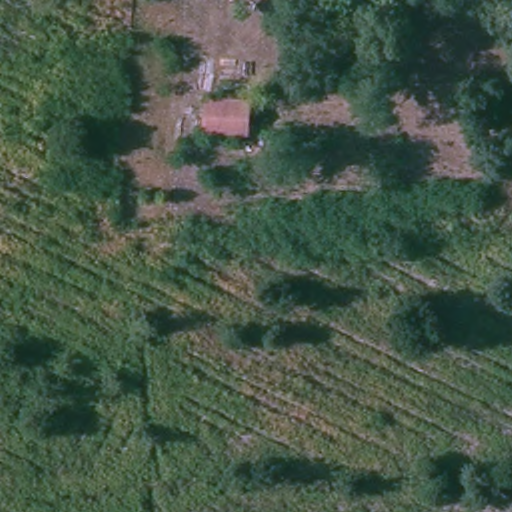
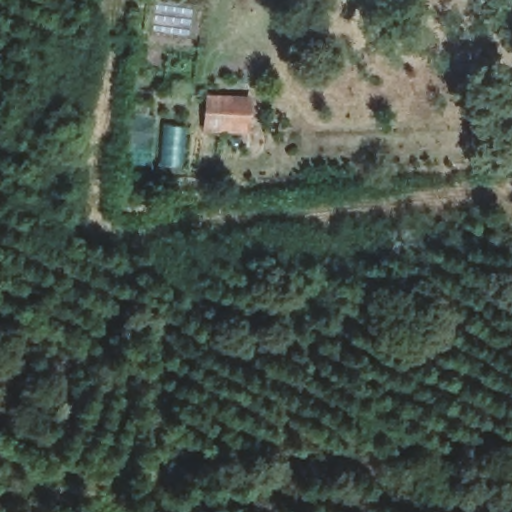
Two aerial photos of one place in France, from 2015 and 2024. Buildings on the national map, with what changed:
unchanged [(232,131),(197,128),(200,99),(235,102),(232,131)]

